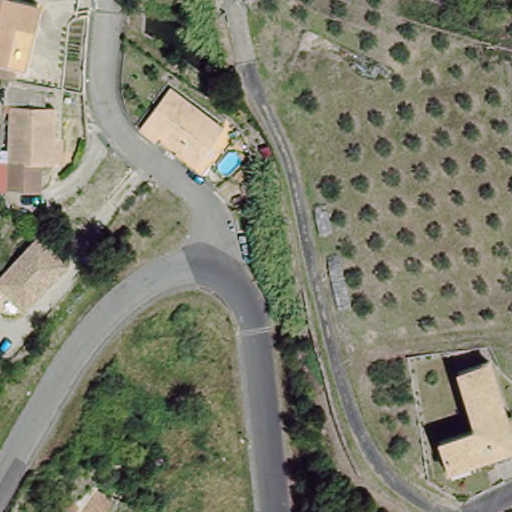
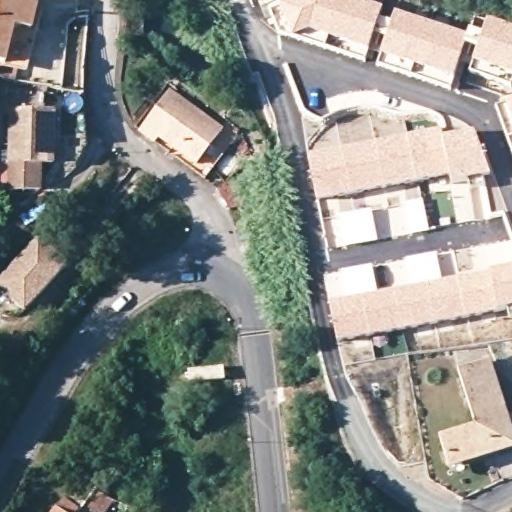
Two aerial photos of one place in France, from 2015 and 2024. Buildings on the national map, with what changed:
unchanged [(0,55),(0,0),(37,0),(38,0),(18,61),(0,55)]
new [(284,0),(363,0),(383,7),(365,62),(338,53),(341,45),(330,41),(326,49),(304,42),(278,35),(268,7),(284,0)]
new [(395,11),(467,34),(465,45),(450,90),(376,66),(395,11)]
new [(467,34),(470,27),(480,30),(486,16),(512,25),(512,76),(471,61),(474,48),(465,45),(467,34)]
unchanged [(176,86),(228,129),(200,161),(150,117),(176,86)]
unchanged [(29,196),(0,192),(0,189),(13,114),(7,113),(9,95),(47,100),(45,118),(53,119),(45,175),(32,174),(29,196)]
new [(512,99),(512,155),(508,145),(496,106),(512,99)]
new [(333,148),(375,140),(408,133),(441,126),(444,136),(449,177),(418,183),(352,196),(335,199),(317,202),(307,153),(333,148)]
new [(475,128),(490,177),(450,184),(449,177),(444,136),(475,128)]
unchanged [(69,264),(27,311),(0,284),(0,278),(39,233),(69,264)]
new [(378,292),(409,285),(445,277),(454,275),(477,269),(512,262),(512,310),(502,312),(337,345),(328,302),(378,292)]
unchanged [(454,375),(486,364),(512,440),(512,451),(448,473),(438,442),(473,430),(454,375)]
new [(190,371),(225,367),(226,379),(191,383),(190,371)]
unchanged [(93,486),(112,500),(104,512),(76,512),(74,511),(93,486)]
unchanged [(170,512),(149,512),(148,504),(170,512)]
unchanged [(58,512),(37,512),(43,505),(58,512)]

